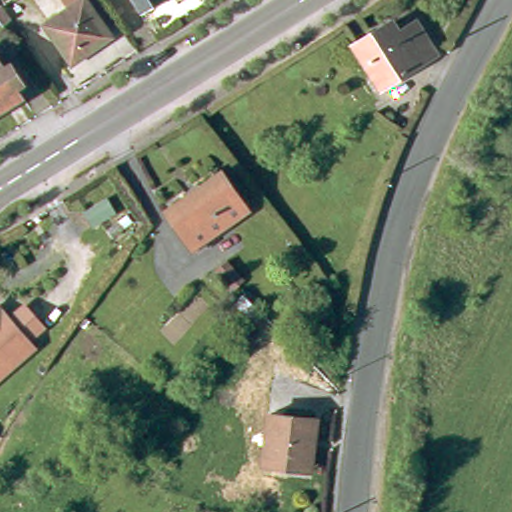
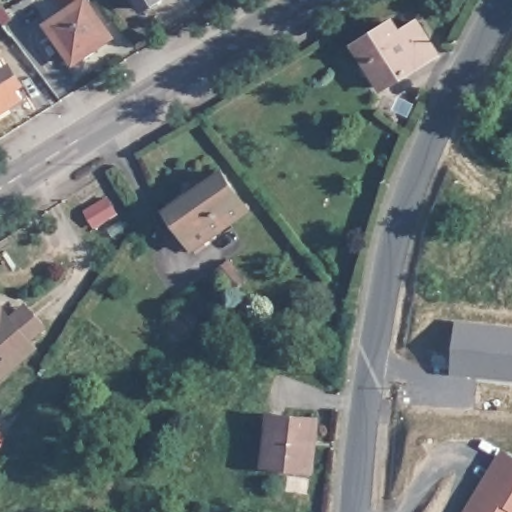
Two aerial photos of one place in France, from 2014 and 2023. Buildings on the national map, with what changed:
unchanged [(53,40),(75,22),(65,10),(78,0),(92,0),(97,6),(124,41),(115,49),(77,74),(53,40)]
unchanged [(141,12),(134,0),(160,0),(141,12)]
unchanged [(0,23),(0,8),(4,5),(13,17),(2,25),(0,23)]
unchanged [(387,35),(393,46),(412,35),(429,65),(374,96),(350,55),(387,35)]
unchanged [(20,100),(0,113),(0,66),(20,100)]
unchanged [(223,175),(249,214),(195,249),(169,210),(223,175)]
new [(109,197),(119,214),(95,228),(85,212),(109,197)]
unchanged [(237,257),(247,270),(240,275),(246,283),(235,293),(218,272),(237,257)]
unchanged [(0,371),(0,306),(33,343),(0,371)]
new [(512,329),(512,379),(455,371),(462,323),(512,329)]
unchanged [(315,427),(309,478),(264,473),(270,421),(315,427)]
new [(512,453),(512,512),(462,512),(502,447),(512,453)]

